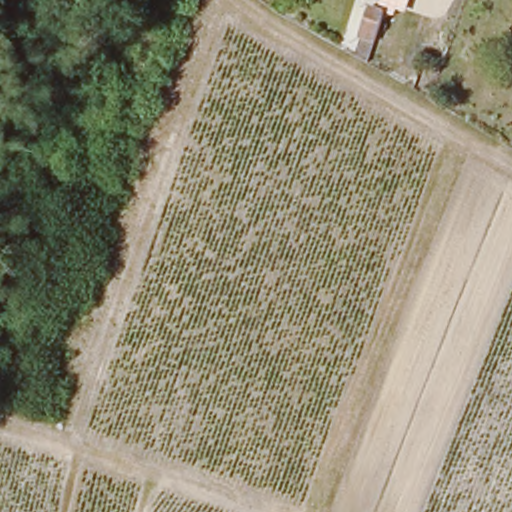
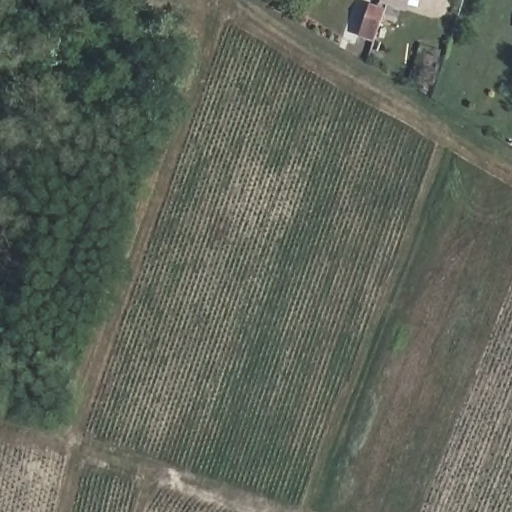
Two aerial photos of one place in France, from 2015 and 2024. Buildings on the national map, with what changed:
unchanged [(407,12),(379,4),(380,0),(412,0),(407,12)]
unchanged [(368,7),(377,9),(383,11),(374,40),(359,36),(368,7)]

